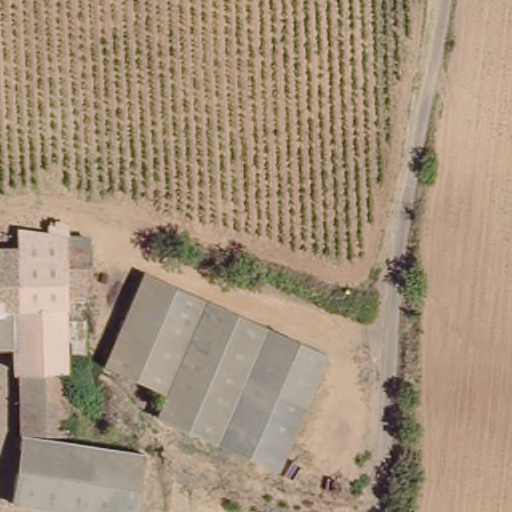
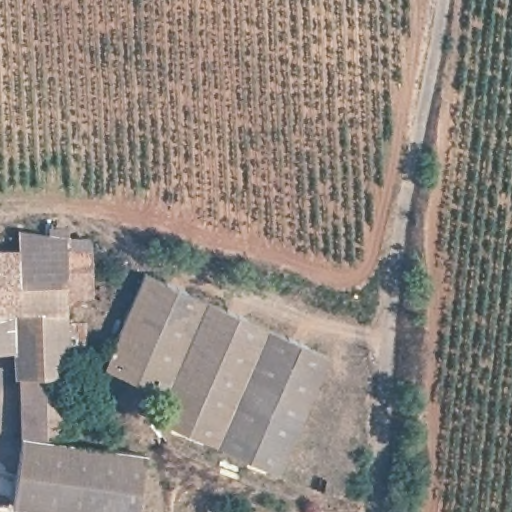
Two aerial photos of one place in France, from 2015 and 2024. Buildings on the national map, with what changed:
unchanged [(84,287),(64,287),(65,320),(85,320),(86,358),(83,364),(65,363),(64,432),(20,432),(19,346),(0,346),(0,245),(16,246),(15,216),(46,215),(47,229),(83,227),(84,259),(84,287)]
unchanged [(143,273),(325,352),(279,472),(157,415),(163,392),(105,362),(143,273)]
unchanged [(138,512),(91,512),(14,502),(22,436),(146,453),(138,512)]

